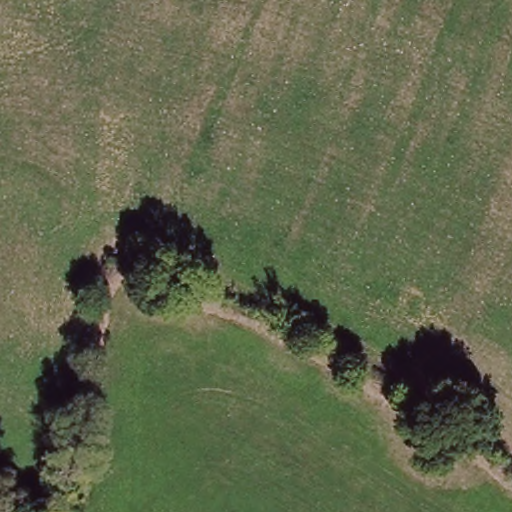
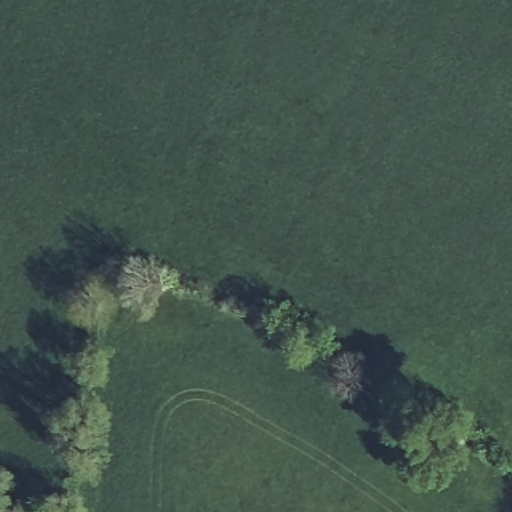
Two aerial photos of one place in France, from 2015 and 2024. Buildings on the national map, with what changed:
[]

